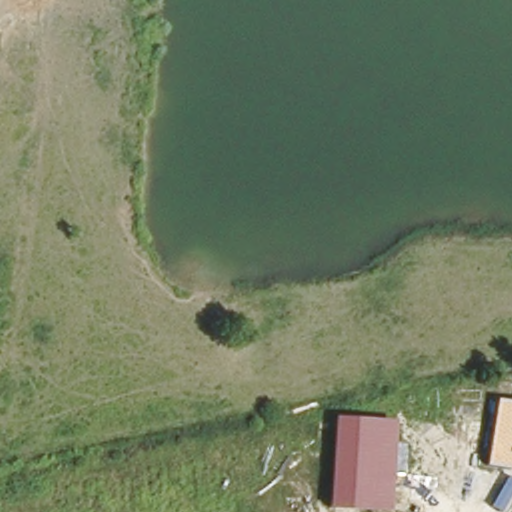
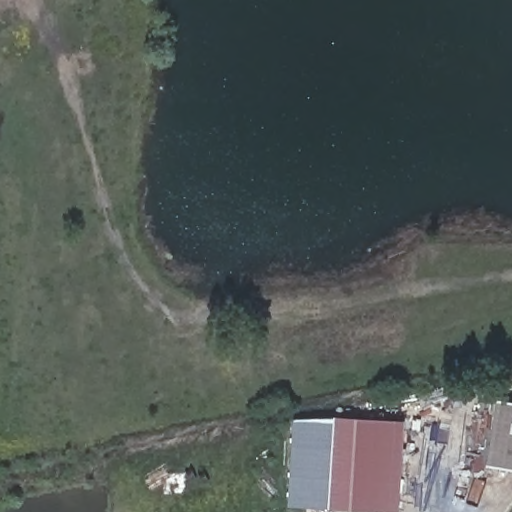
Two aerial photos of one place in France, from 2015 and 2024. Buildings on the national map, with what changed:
unchanged [(497,399),(512,401),(512,469),(486,465),(497,399)]
new [(334,417),(329,509),(287,506),(292,420),(334,417)]
unchanged [(392,512),(376,512),(329,509),(334,417),(396,420),(392,512)]

